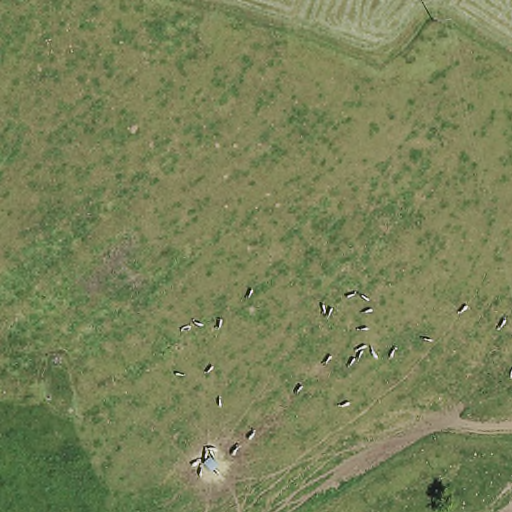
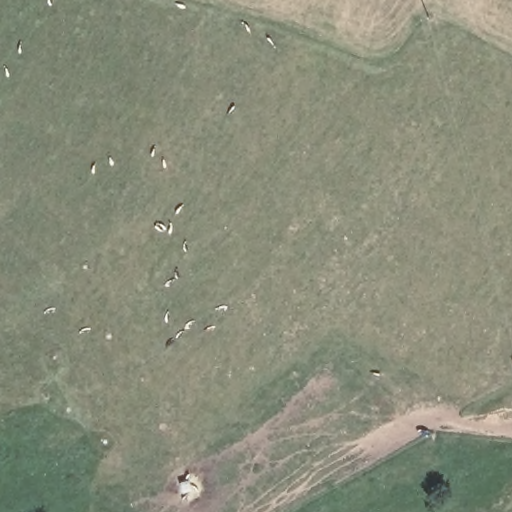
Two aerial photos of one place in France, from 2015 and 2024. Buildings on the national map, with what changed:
[]

